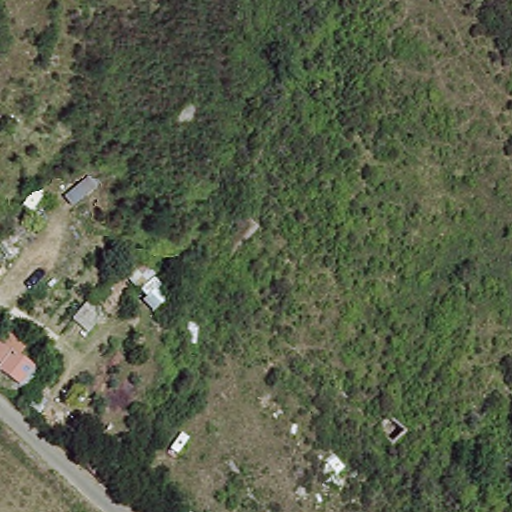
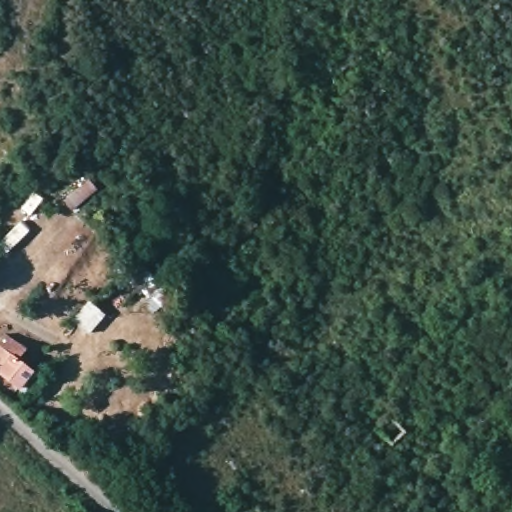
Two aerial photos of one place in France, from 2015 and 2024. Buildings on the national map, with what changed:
unchanged [(155,270),(145,293),(116,268),(128,245),(155,270)]
unchanged [(112,315),(89,333),(68,325),(91,298),(112,315)]
unchanged [(20,386),(0,371),(0,347),(33,369),(20,386)]

